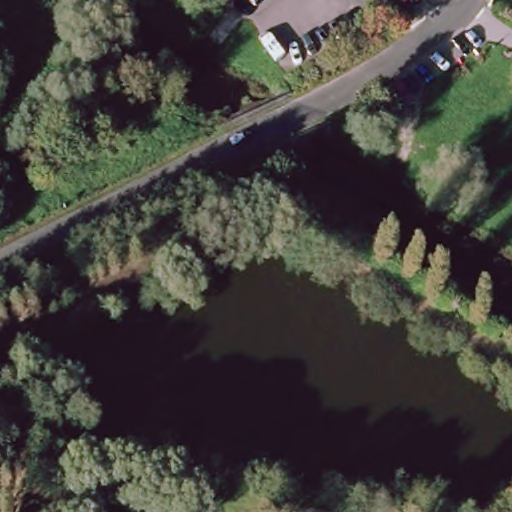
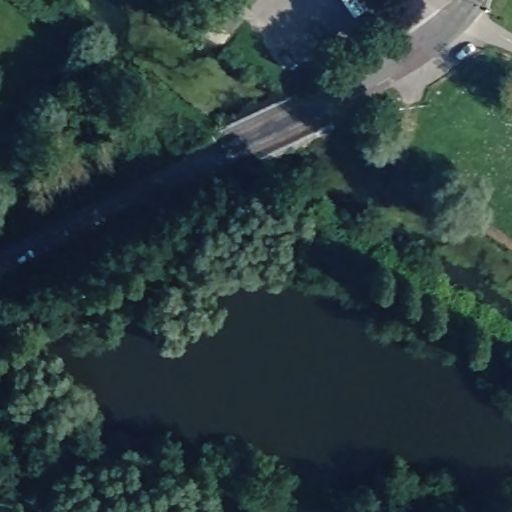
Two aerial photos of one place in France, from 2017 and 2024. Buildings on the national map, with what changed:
unchanged [(333,511),(333,512),(270,512),(270,507),(303,510),(333,511)]

